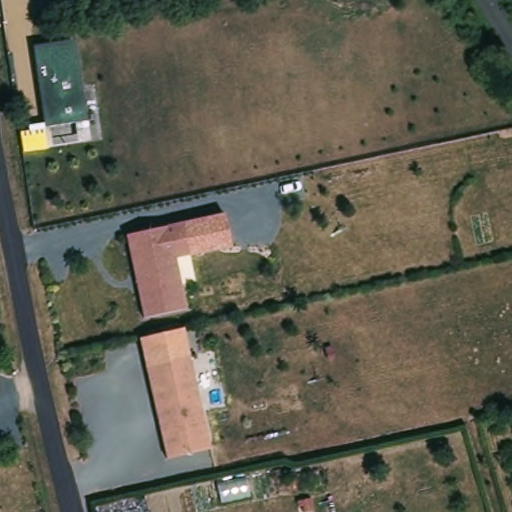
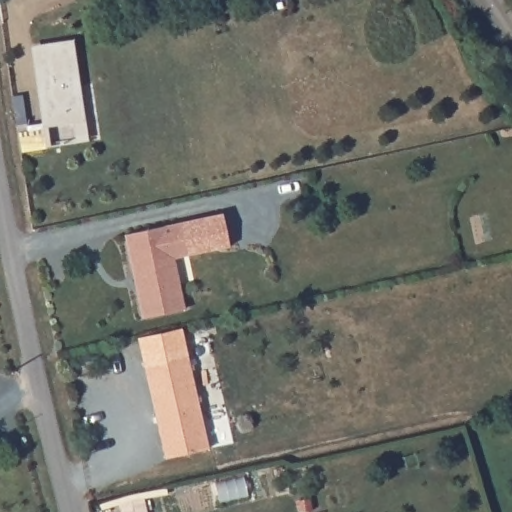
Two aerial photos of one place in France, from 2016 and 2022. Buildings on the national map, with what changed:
unchanged [(42,126),(30,46),(72,39),(85,118),(42,126)]
unchanged [(184,225),(191,257),(176,260),(187,312),(145,321),(127,238),(184,225)]
unchanged [(147,369),(139,338),(183,328),(190,358),(147,369)]
unchanged [(190,358),(211,452),(167,462),(147,369),(190,358)]

